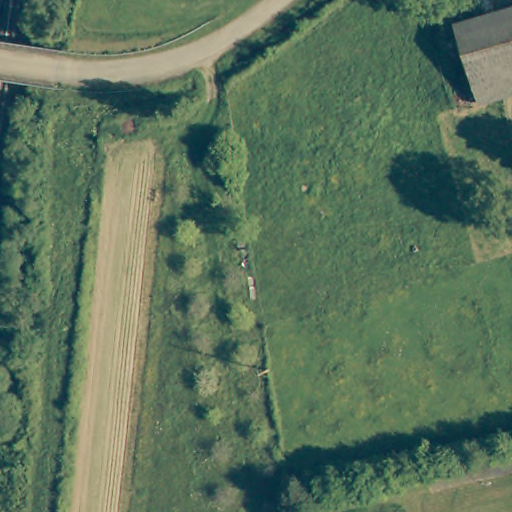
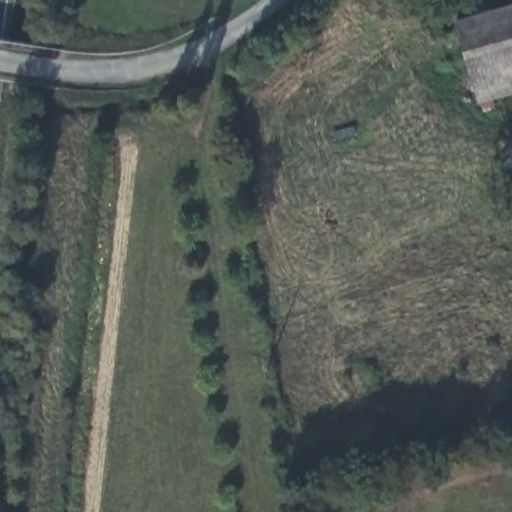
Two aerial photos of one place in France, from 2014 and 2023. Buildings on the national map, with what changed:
unchanged [(512,18),(512,95),(481,104),(461,33),(512,18)]

